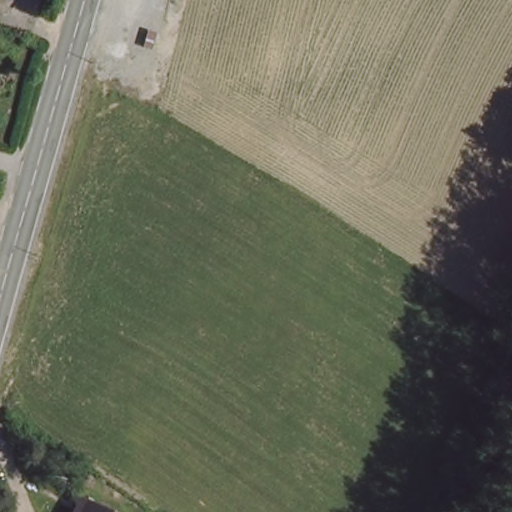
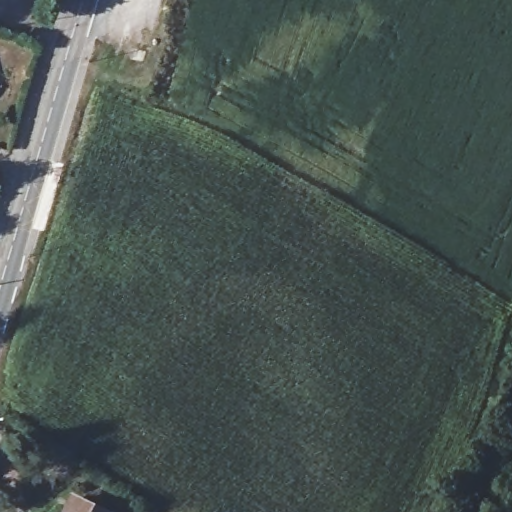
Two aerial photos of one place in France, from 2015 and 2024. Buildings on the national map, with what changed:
unchanged [(76,512),(78,507),(86,512),(76,512)]

